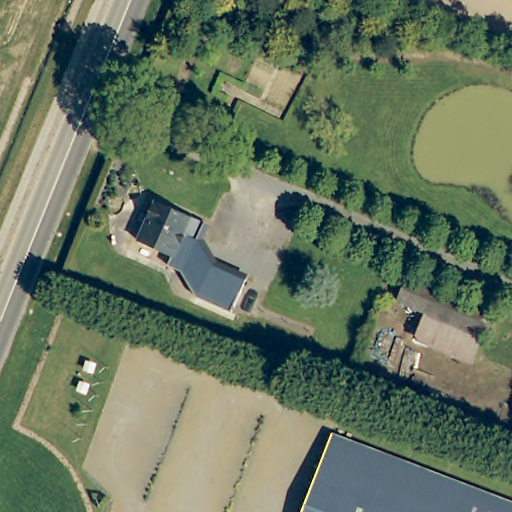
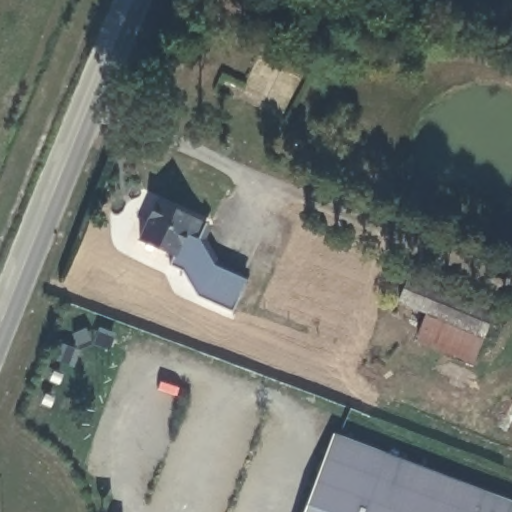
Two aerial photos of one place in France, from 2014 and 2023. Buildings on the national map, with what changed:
unchanged [(188,114),(194,100),(223,110),(218,125),(188,114)]
unchanged [(186,270),(172,265),(175,258),(141,244),(160,202),(210,223),(201,242),(221,265),(252,277),(239,311),(211,300),(203,297),(186,270)]
unchanged [(410,279),(495,317),(487,337),(400,300),(410,279)]
unchanged [(512,501),(512,512),(302,512),(331,434),(512,501)]

